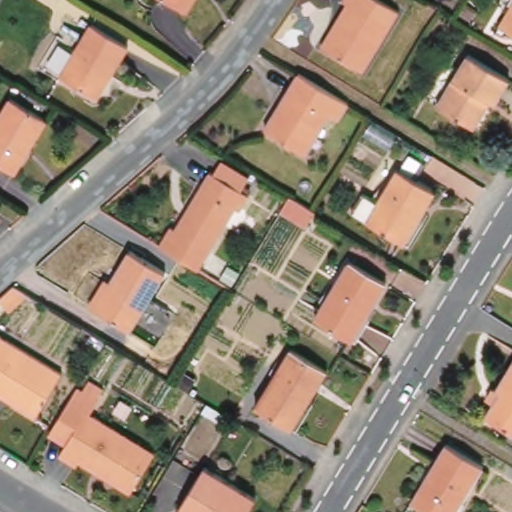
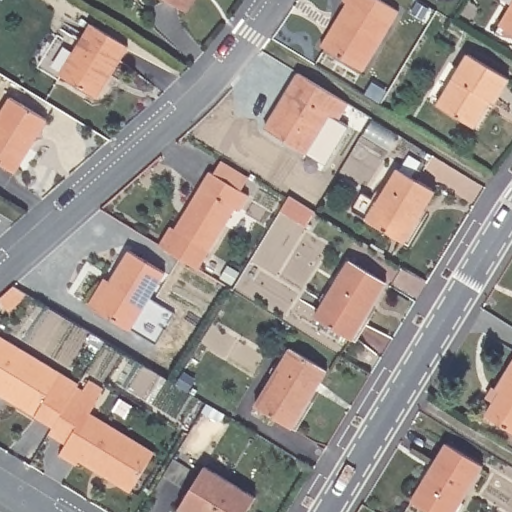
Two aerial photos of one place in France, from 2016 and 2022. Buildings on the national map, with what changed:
unchanged [(182,9),(167,0),(187,0),(182,9)]
unchanged [(361,70),(332,53),(358,9),(342,0),(382,0),(397,9),(361,70)]
unchanged [(503,23),(512,7),(512,29),(503,23)]
unchanged [(95,98),(59,76),(90,24),(126,46),(95,98)]
unchanged [(497,103),(489,99),(473,125),(440,104),(471,54),(512,80),(497,103)]
unchanged [(302,150),(270,132),(304,75),(353,105),(344,120),(326,110),(302,150)]
unchanged [(0,165),(0,125),(15,100),(51,122),(19,176),(0,165)]
unchanged [(182,216),(217,158),(220,160),(228,147),(256,164),(248,177),(255,181),(246,197),(242,194),(205,255),(166,232),(178,214),(182,216)]
unchanged [(405,243),(368,220),(398,170),(436,192),(405,243)]
unchanged [(307,229),(281,213),(291,197),(317,213),(307,229)]
unchanged [(131,330),(94,308),(128,252),(165,274),(131,330)]
unchanged [(354,338),(319,317),(353,260),(388,282),(354,338)]
unchanged [(0,396),(0,337),(61,375),(34,417),(0,396)]
unchanged [(296,429),(261,408),(295,349),(331,371),(296,429)]
unchanged [(488,415),(503,392),(496,389),(512,363),(512,430),(488,415)]
unchanged [(84,387),(90,380),(105,389),(91,412),(153,447),(130,489),(81,461),(79,465),(60,457),(67,443),(50,433),(80,384),(84,387)]
unchanged [(482,469),(457,512),(432,512),(414,501),(447,447),(482,469)]
unchanged [(182,512),(179,509),(204,467),(256,498),(247,512),(182,512)]

